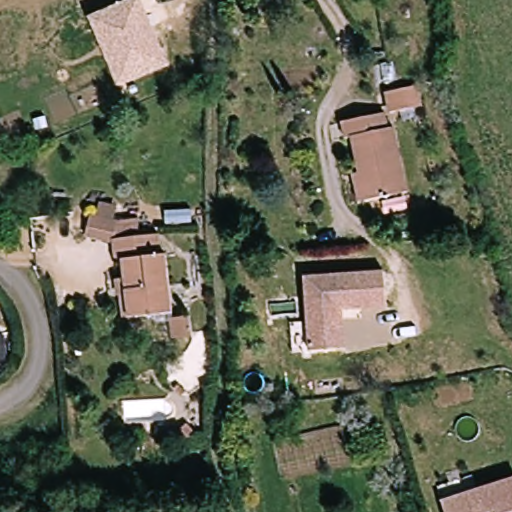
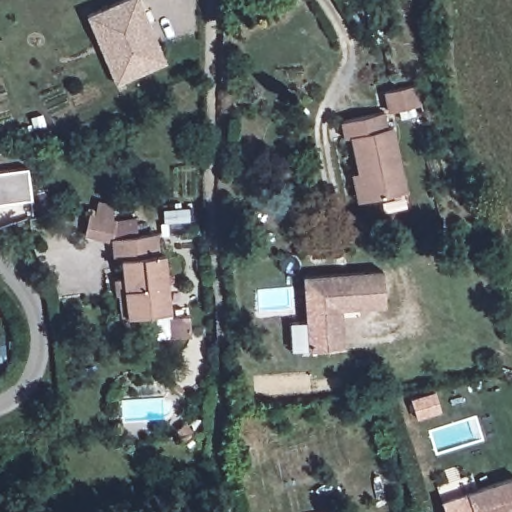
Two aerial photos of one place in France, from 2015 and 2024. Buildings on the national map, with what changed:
unchanged [(168,64),(117,86),(86,15),(122,0),(140,0),(168,64)]
unchanged [(401,105),(403,84),(427,86),(425,107),(401,105)]
unchanged [(354,159),(364,160),(367,127),(359,127),(360,109),(404,112),(402,130),(411,130),(405,194),(362,191),(351,190),(354,159)]
new [(31,191),(31,195),(26,198),(0,201),(0,169),(28,166),(31,191)]
unchanged [(99,201),(117,204),(115,219),(138,217),(141,237),(111,242),(115,223),(94,219),(99,201)]
unchanged [(190,208),(191,222),(164,224),(164,210),(190,208)]
unchanged [(112,282),(123,280),(120,261),(111,262),(109,247),(80,242),(85,217),(115,223),(111,242),(158,234),(161,255),(169,254),(178,310),(129,317),(118,319),(112,282)]
unchanged [(386,307),(343,311),(345,348),(307,352),(302,276),(383,269),(386,307)]
unchanged [(187,338),(174,340),(172,321),(185,319),(187,338)]
unchanged [(182,451),(171,443),(180,431),(191,439),(182,451)]
unchanged [(512,476),(512,512),(444,512),(440,500),(512,476)]

